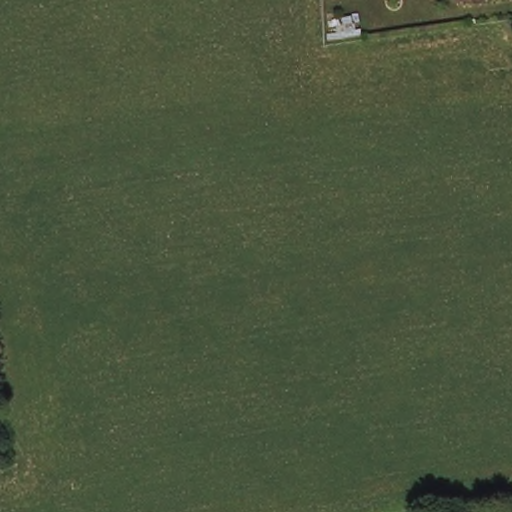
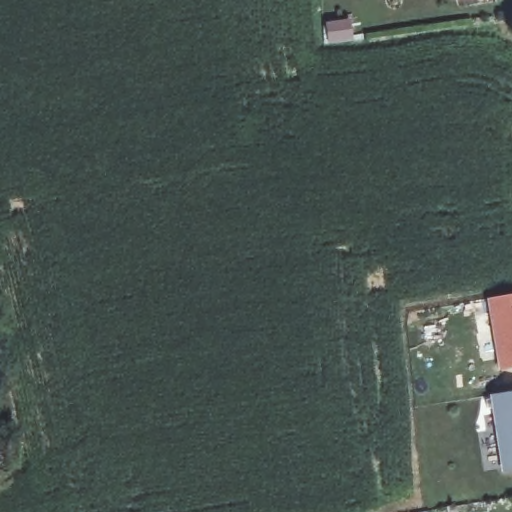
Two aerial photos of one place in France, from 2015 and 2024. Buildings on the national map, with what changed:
new [(487,299),(512,294),(512,367),(499,368),(487,299)]
new [(490,394),(512,391),(512,471),(501,472),(490,394)]

